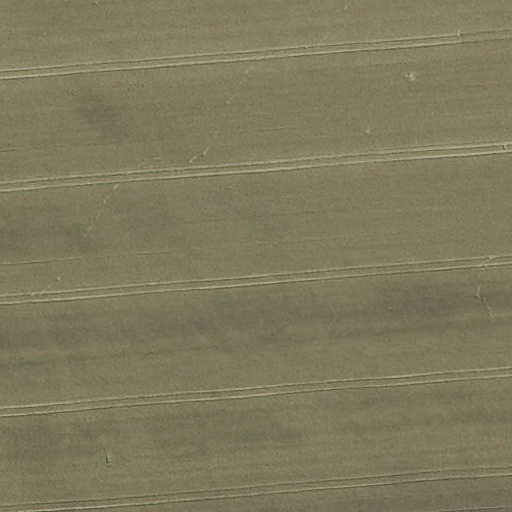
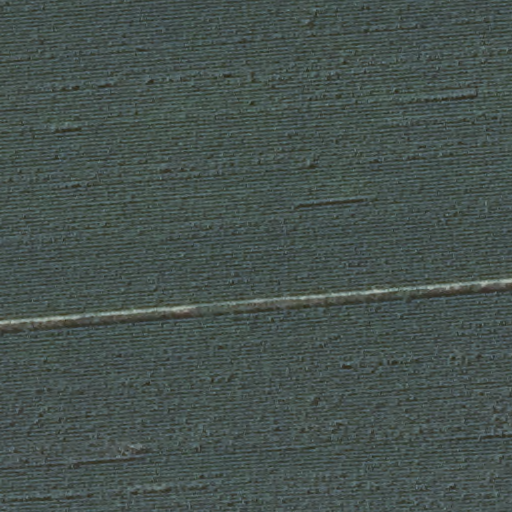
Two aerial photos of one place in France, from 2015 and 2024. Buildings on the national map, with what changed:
[]

